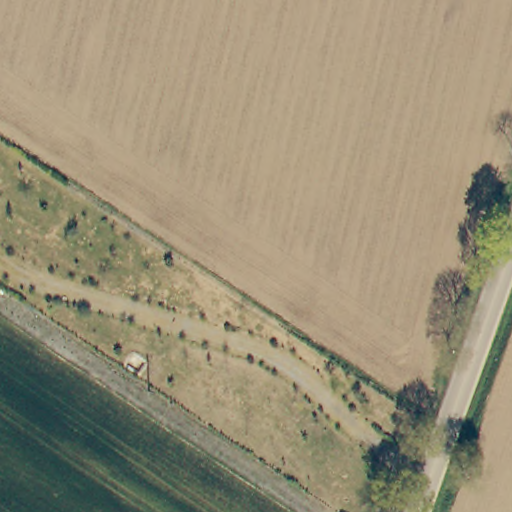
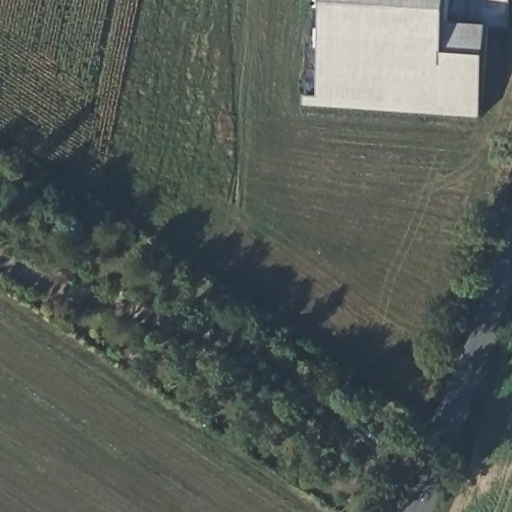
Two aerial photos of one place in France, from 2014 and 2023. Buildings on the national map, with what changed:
new [(447,23),(488,25),(483,119),(305,107),(305,96),(319,97),(326,0),(449,0),(447,23)]

